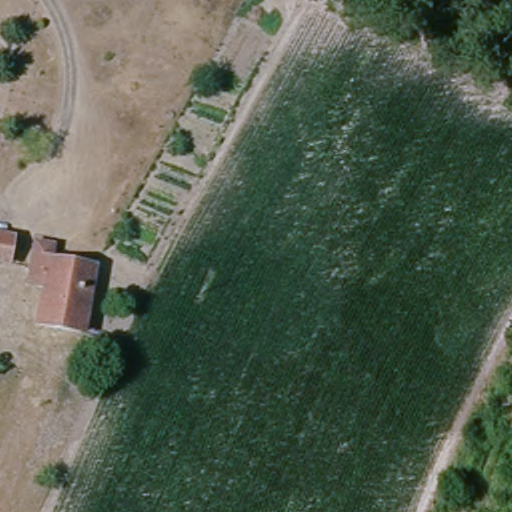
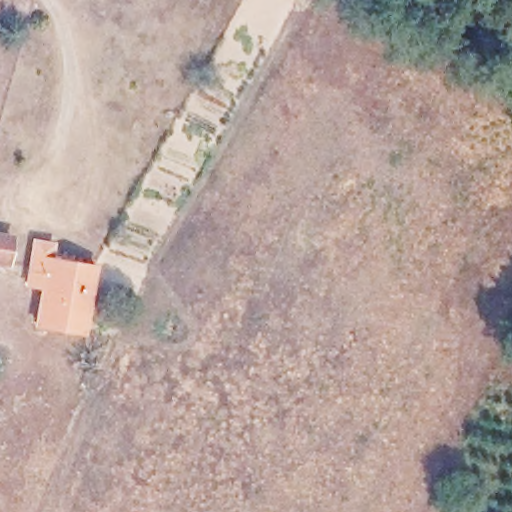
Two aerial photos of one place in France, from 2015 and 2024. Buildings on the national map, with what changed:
unchanged [(3,259),(0,259),(0,239),(6,240),(3,259)]
unchanged [(36,242),(55,245),(53,258),(58,261),(91,267),(75,329),(36,320),(44,284),(27,281),(30,264),(36,242)]

